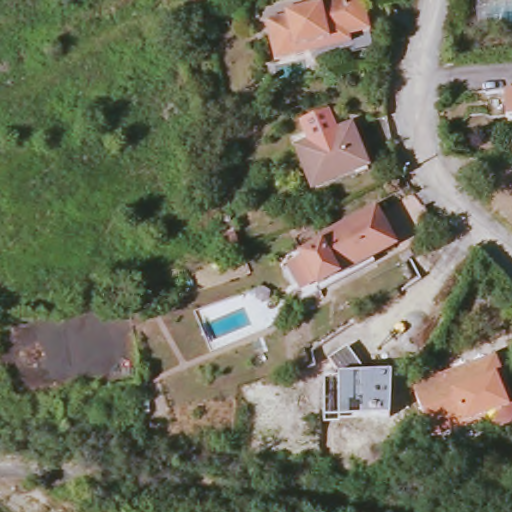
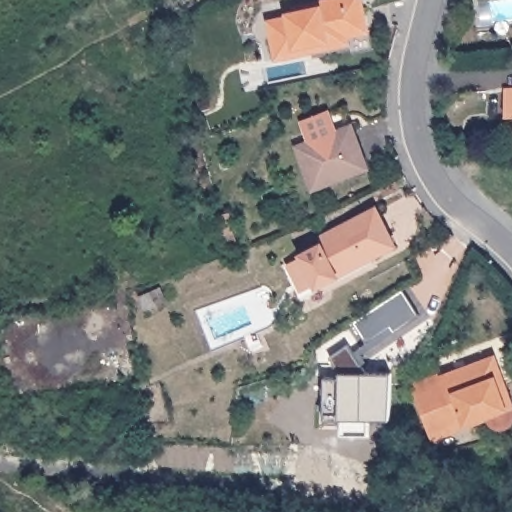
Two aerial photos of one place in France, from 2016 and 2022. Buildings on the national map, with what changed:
unchanged [(309,56),(275,63),(267,23),(286,19),(286,16),(312,9),(311,5),(337,0),(362,0),(369,36),(348,41),(349,47),(309,56)]
unchanged [(479,17),(478,0),(512,0),(512,14),(479,17)]
unchanged [(506,116),(505,89),(512,89),(512,116),(506,116)]
unchanged [(353,128),(369,170),(314,192),(296,151),(353,128)]
unchanged [(296,266),(309,259),(306,255),(327,244),(324,238),(379,208),(399,244),(344,274),(323,285),(320,280),(307,287),(296,266)]
new [(405,287),(422,314),(397,330),(394,325),(369,341),(355,319),(380,303),(405,287)]
unchanged [(347,347),(366,373),(391,373),(391,419),(325,419),(325,378),(339,379),(339,373),(330,359),(347,347)]
unchanged [(443,379),(442,375),(473,363),(472,360),(493,352),(512,401),(512,420),(511,421),(509,422),(508,423),(507,424),(505,425),(504,425),(502,426),(501,426),(500,426),(499,426),(498,426),(495,425),(494,425),(492,424),(490,423),(489,422),(488,421),(487,420),(486,419),(486,418),(485,416),(484,415),(432,436),(414,390),(443,379)]

